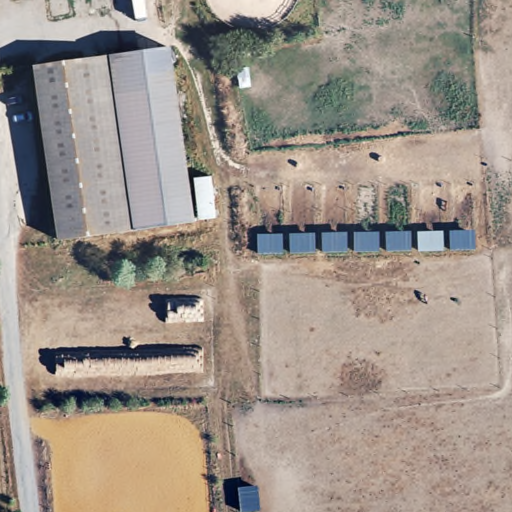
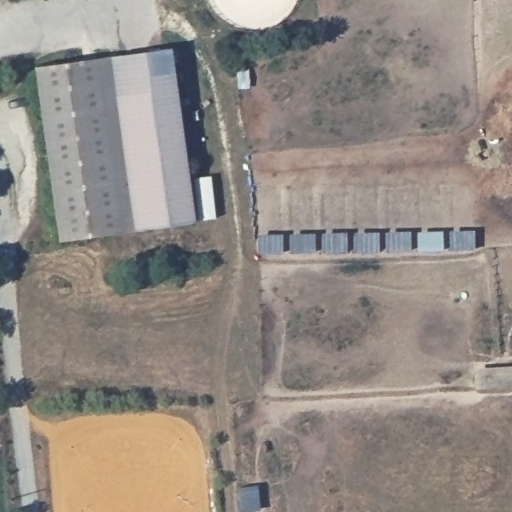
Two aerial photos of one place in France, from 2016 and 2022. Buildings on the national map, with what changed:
unchanged [(168,51),(190,229),(55,246),(31,68),(168,51)]

